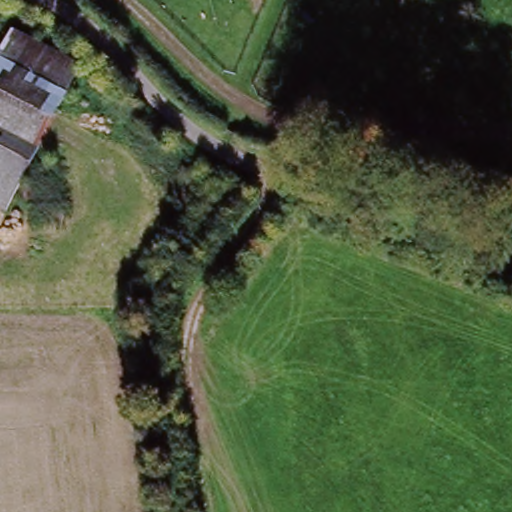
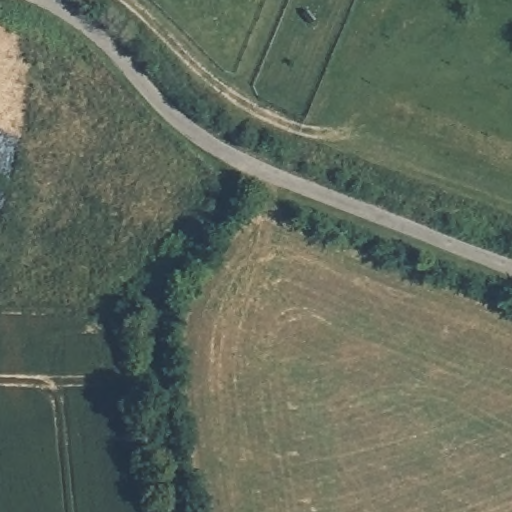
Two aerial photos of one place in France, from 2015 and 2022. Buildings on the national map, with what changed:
demolished [(0,212),(0,55),(13,30),(85,66),(8,217),(0,212)]

